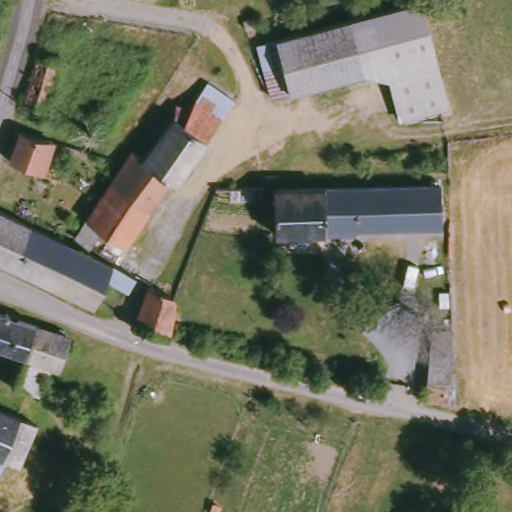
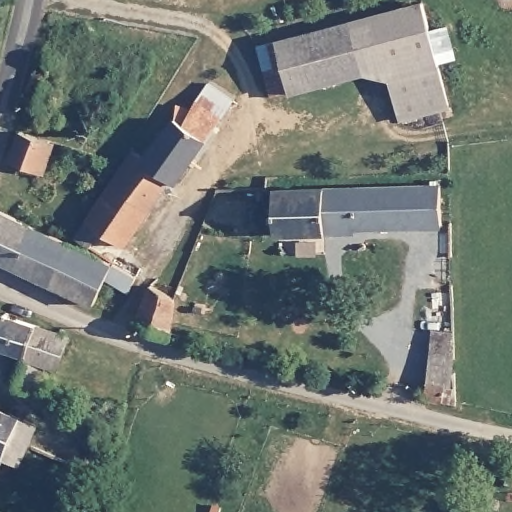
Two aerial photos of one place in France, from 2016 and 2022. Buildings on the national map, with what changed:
unchanged [(246,51),(264,46),(427,2),(452,106),(404,121),(390,66),(278,97),(260,101),(246,51)]
unchanged [(60,63),(45,111),(25,105),(39,56),(60,63)]
unchanged [(83,216),(133,148),(139,154),(171,113),(171,101),(191,97),(205,79),(229,96),(169,180),(162,174),(121,243),(99,226),(88,241),(66,226),(77,212),(83,216)]
unchanged [(52,139),(43,172),(13,161),(23,129),(52,139)]
unchanged [(269,185),(436,182),(438,229),(272,229),(269,185)]
unchanged [(107,262),(133,274),(128,287),(100,273),(89,301),(83,297),(0,259),(0,208),(101,256),(107,262)]
unchanged [(164,337),(136,324),(151,281),(169,297),(164,337)]
unchanged [(27,324),(19,356),(0,348),(0,314),(27,324)]
unchanged [(50,366),(46,366),(38,393),(13,381),(19,356),(27,324),(59,333),(50,366)]
unchanged [(435,331),(455,333),(455,388),(447,388),(444,402),(427,399),(435,331)]
unchanged [(33,417),(19,458),(3,452),(0,462),(0,403),(33,417)]

